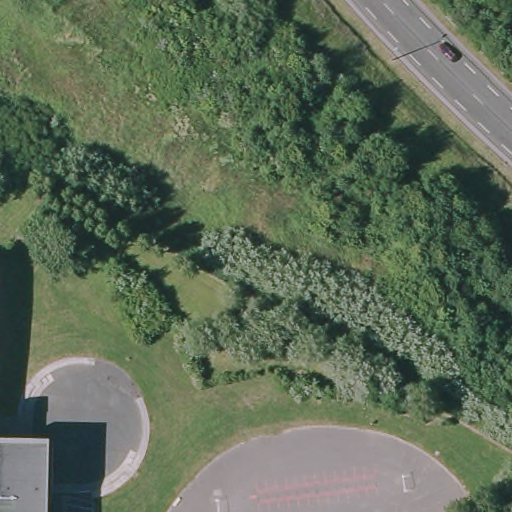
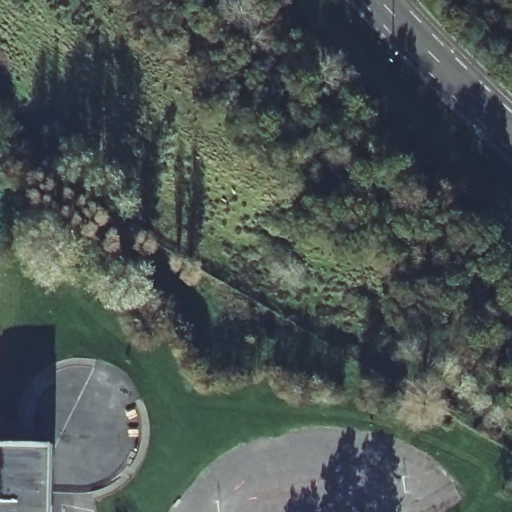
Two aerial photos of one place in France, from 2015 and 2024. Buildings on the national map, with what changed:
unchanged [(48,441),(47,505),(51,505),(50,512),(0,512),(0,441),(48,441)]

